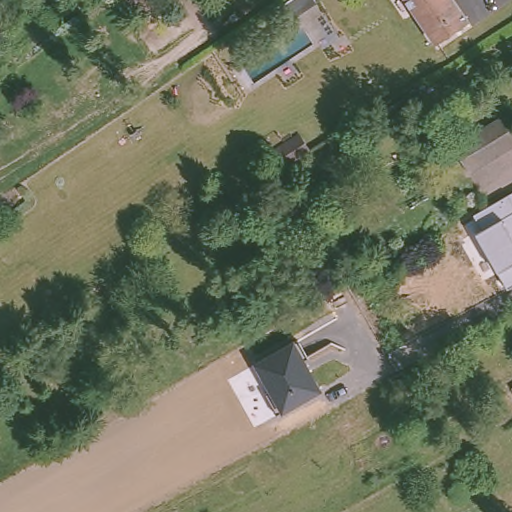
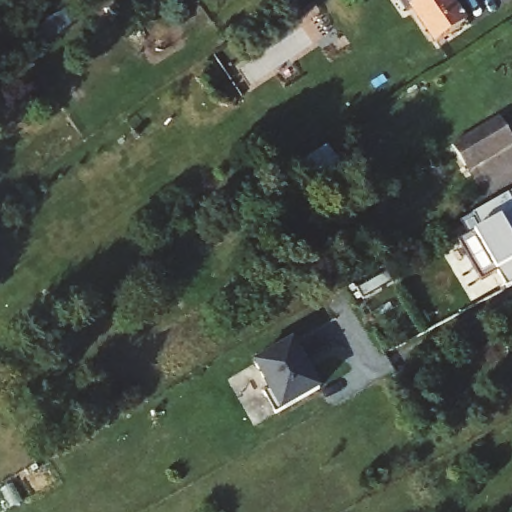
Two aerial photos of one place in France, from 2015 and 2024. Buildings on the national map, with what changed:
unchanged [(443,40),(414,0),(453,0),(468,21),(443,40)]
unchanged [(512,136),(512,146),(506,150),(478,166),(481,171),(465,180),(449,153),(492,127),(502,121),(512,136)]
unchanged [(474,234),(482,230),(473,216),(512,192),(512,282),(506,285),(474,234)]
unchanged [(321,391),(281,412),(253,363),(293,341),(321,391)]

